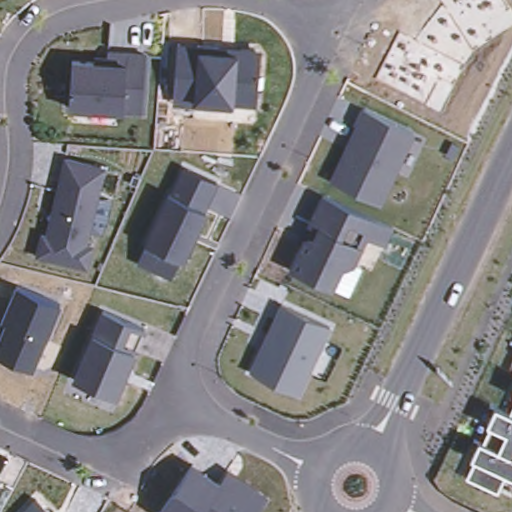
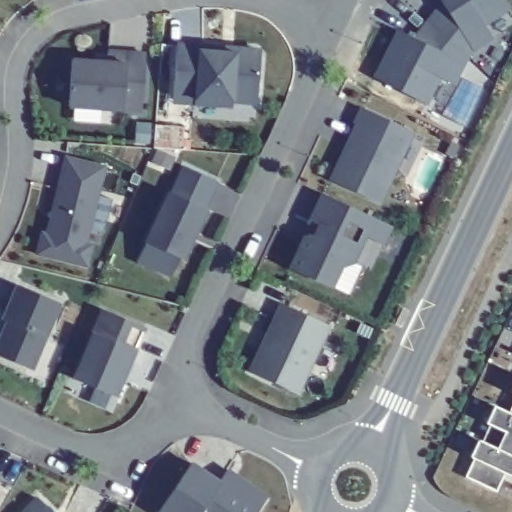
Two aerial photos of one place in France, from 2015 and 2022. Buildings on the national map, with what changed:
new [(414,38),(442,1),(441,0),(505,0),(511,9),(486,26),(493,39),(471,50),(464,64),(454,85),(440,77),(428,103),(373,77),(397,29),(414,38)]
unchanged [(253,104),(232,104),(195,100),(174,103),(177,43),(257,47),(253,104)]
unchanged [(141,112),(120,111),(72,107),(75,58),(121,61),(123,51),(145,52),(141,112)]
unchanged [(413,130),(380,205),(330,184),(362,107),(413,130)]
unchanged [(105,165),(90,241),(95,242),(88,266),(37,254),(40,231),(46,231),(62,157),(105,165)]
unchanged [(217,180),(171,282),(137,265),(182,165),(217,180)]
unchanged [(392,226),(384,246),(366,240),(355,267),(340,270),(333,291),(288,270),(321,195),(392,226)]
unchanged [(60,301),(35,370),(0,355),(0,334),(5,323),(1,320),(15,283),(60,301)]
unchanged [(331,325),(302,395),(250,371),(279,303),(331,325)]
unchanged [(147,328),(118,399),(72,378),(100,310),(147,328)]
unchanged [(470,456),(479,437),(483,440),(491,424),(487,422),(495,405),(509,410),(512,404),(512,476),(505,473),(497,491),(466,476),(474,458),(470,456)]
unchanged [(220,482),(227,469),(269,495),(258,512),(159,512),(191,464),(220,482)]
unchanged [(2,476),(0,479),(0,476),(2,476)]
unchanged [(38,495),(57,512),(23,512),(38,495)]

